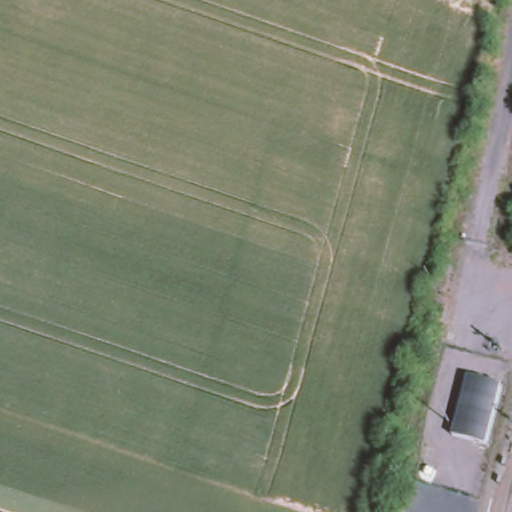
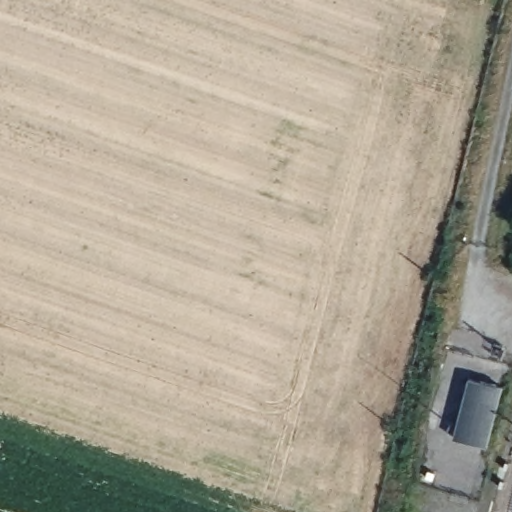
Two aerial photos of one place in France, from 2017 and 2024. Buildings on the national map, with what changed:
unchanged [(470,383),(505,392),(492,449),(455,441),(470,383)]

